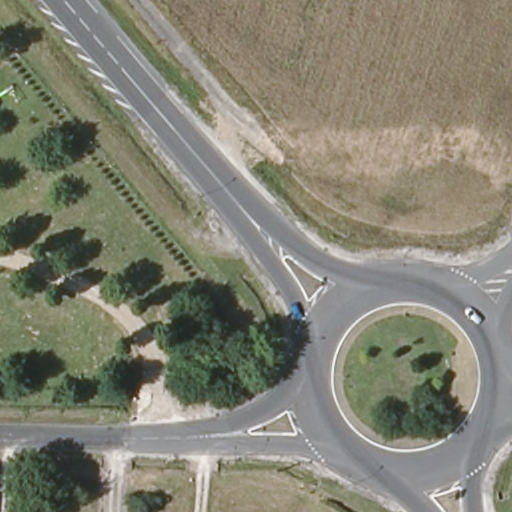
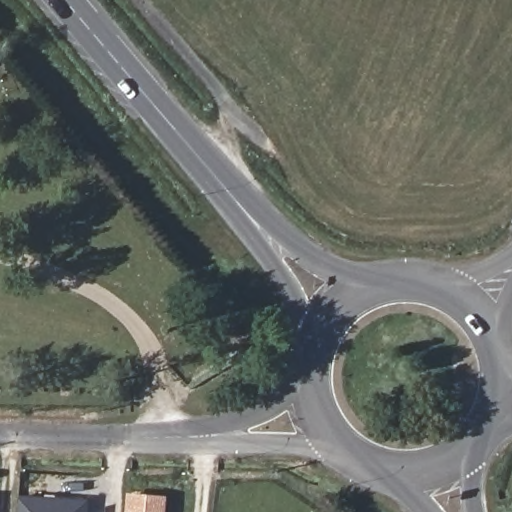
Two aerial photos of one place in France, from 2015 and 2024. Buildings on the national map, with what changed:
new [(126,492),(166,496),(165,512),(124,512),(126,492)]
new [(21,502),(88,506),(88,512),(21,512),(21,502)]

